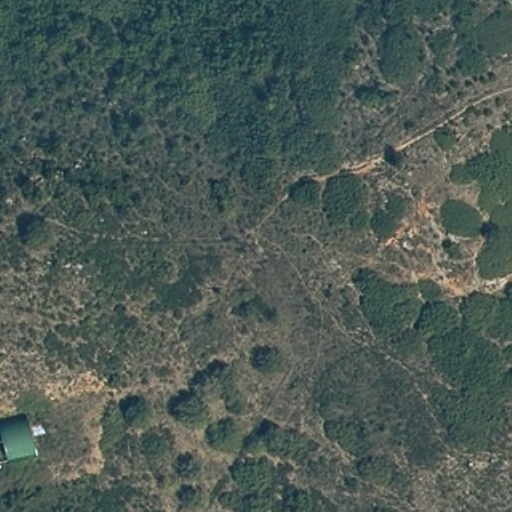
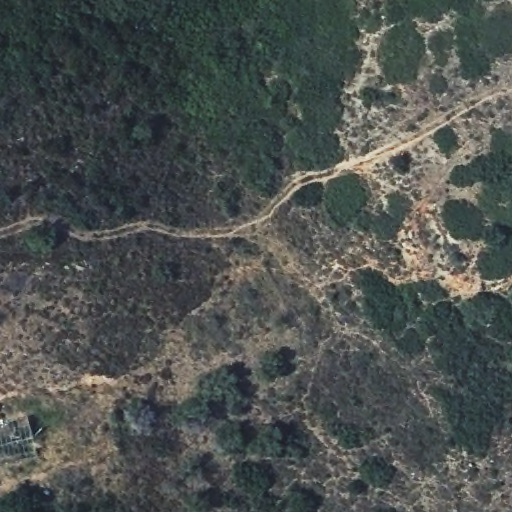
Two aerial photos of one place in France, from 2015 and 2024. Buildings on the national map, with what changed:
unchanged [(25,421),(32,456),(0,462),(0,426),(25,421)]

